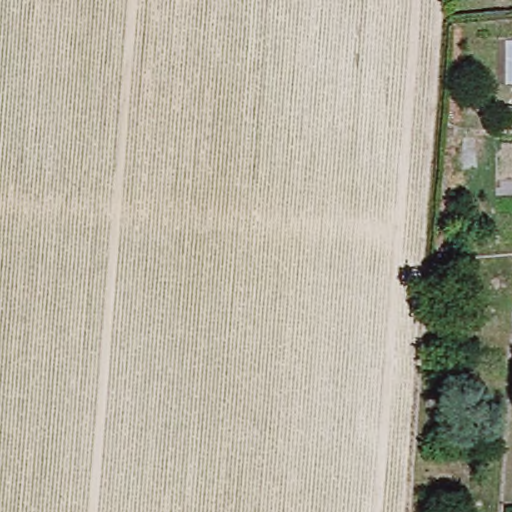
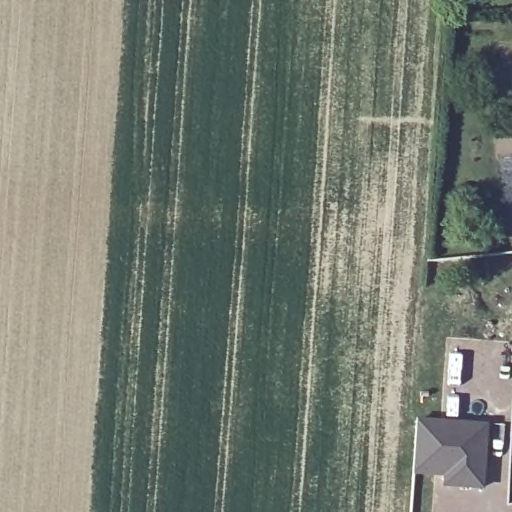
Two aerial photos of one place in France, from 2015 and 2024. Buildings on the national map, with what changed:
new [(413,473),(417,428),(417,421),(487,426),(487,433),(482,488),(445,485),(446,475),(436,475),(413,473)]

